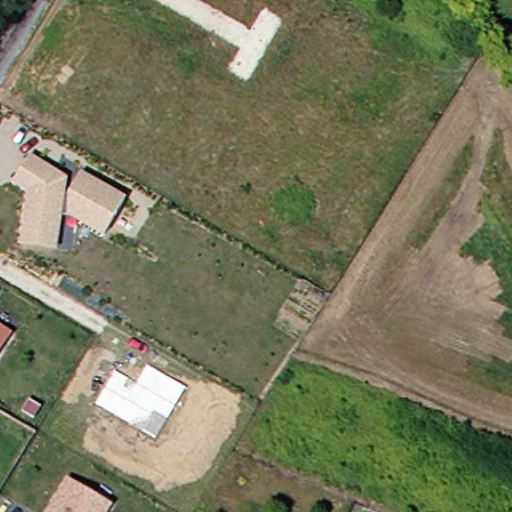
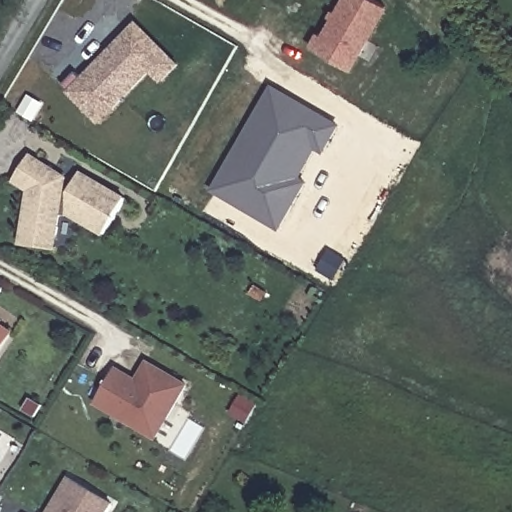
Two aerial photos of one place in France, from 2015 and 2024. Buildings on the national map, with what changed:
new [(320,35),(322,33),(340,0),(373,0),(383,5),(347,69),(308,47),(316,33),(320,35)]
new [(82,111),(59,89),(72,75),(79,82),(97,65),(108,53),(133,27),(175,68),(159,84),(148,73),(111,111),(96,125),(82,111)]
new [(213,191),(273,84),(343,125),(326,154),(318,150),(303,178),(310,182),(283,232),(213,191)]
unchanged [(24,244),(26,234),(32,191),(17,182),(33,156),(68,179),(65,194),(71,196),(84,175),(127,202),(105,237),(69,214),(63,213),(60,239),(58,249),(24,244)]
unchanged [(13,334),(0,352),(0,325),(13,334)]
unchanged [(95,406),(118,367),(137,377),(147,362),(188,384),(157,441),(95,406)]
unchanged [(69,479),(113,504),(108,512),(50,512),(69,479)]

